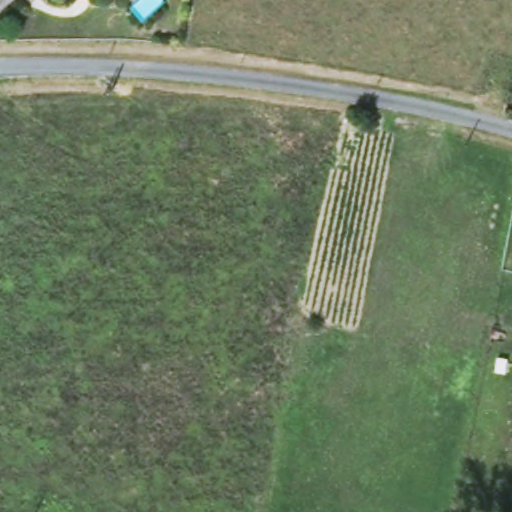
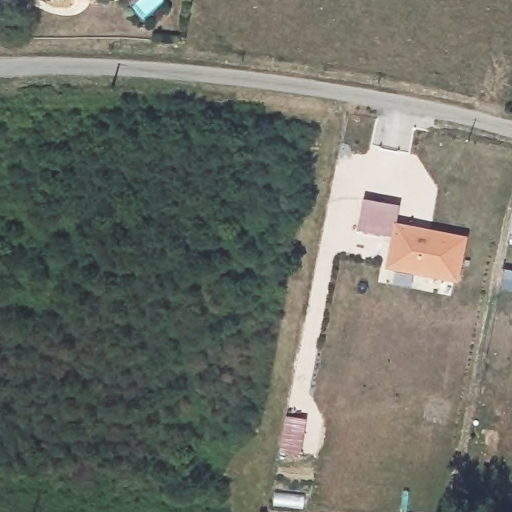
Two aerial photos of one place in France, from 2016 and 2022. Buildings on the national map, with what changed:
new [(468,236),(457,282),(414,272),(410,288),(392,284),(394,268),(384,267),(394,221),(468,236)]
new [(300,455),(282,453),(283,438),(301,440),(300,455)]

